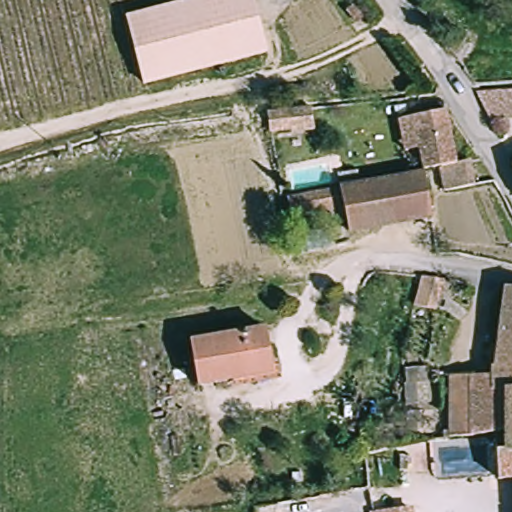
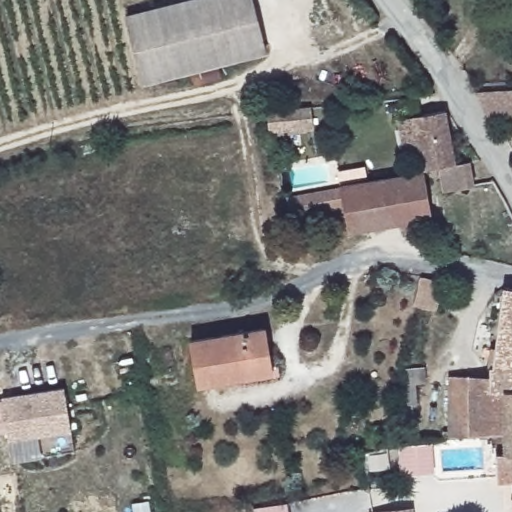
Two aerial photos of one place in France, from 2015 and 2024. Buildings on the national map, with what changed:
unchanged [(141,81),(124,15),(186,0),(250,0),(264,52),(141,81)]
unchanged [(486,90),(512,90),(512,116),(499,116),(486,90)]
unchanged [(279,132),(276,107),(303,104),(306,127),(279,132)]
unchanged [(436,171),(421,174),(414,147),(399,150),(393,116),(409,113),(442,109),(454,167),(472,166),(477,187),(440,190),(436,171)]
unchanged [(339,195),(421,180),(429,219),(345,235),(339,195)]
unchanged [(334,194),(337,215),(306,219),(294,221),(292,200),(334,194)]
unchanged [(446,282),(439,311),(416,306),(425,275),(446,282)]
unchanged [(512,388),(499,388),(498,373),(497,362),(502,362),(509,282),(512,283),(512,388)]
unchanged [(191,341),(263,328),(273,371),(198,382),(191,341)]
unchanged [(446,479),(445,463),(454,462),(454,438),(479,435),(476,375),(498,373),(499,388),(512,388),(512,473),(446,479)]
unchanged [(454,438),(449,377),(476,375),(479,435),(454,438)]
new [(5,407),(68,398),(75,442),(12,451),(10,440),(0,442),(0,413),(6,412),(5,407)]
unchanged [(414,512),(375,512),(375,511),(413,507),(414,512)]

